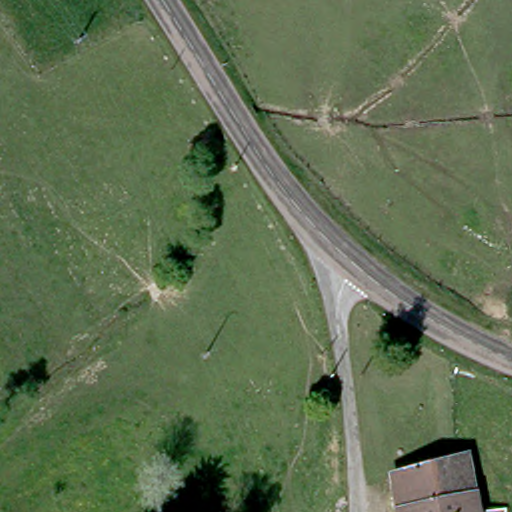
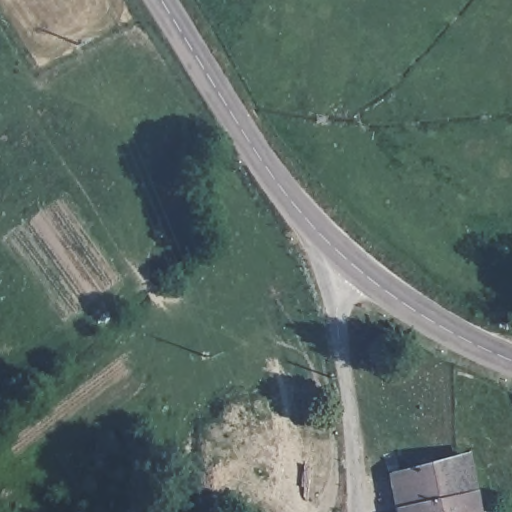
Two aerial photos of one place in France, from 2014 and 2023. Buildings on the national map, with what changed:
unchanged [(397,512),(390,469),(462,448),(468,468),(478,512),(397,512)]

